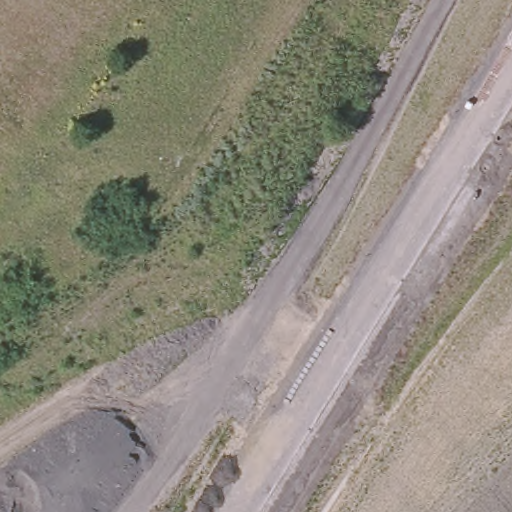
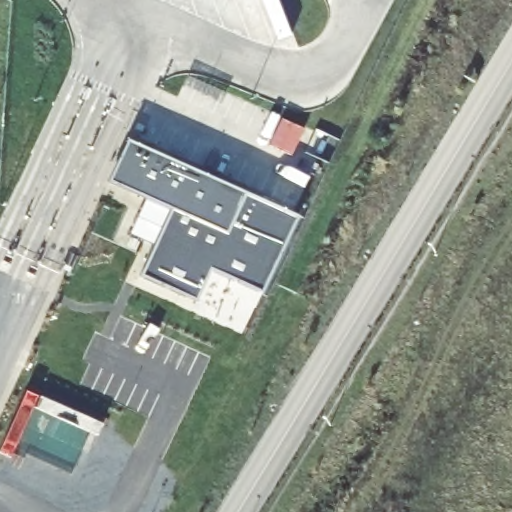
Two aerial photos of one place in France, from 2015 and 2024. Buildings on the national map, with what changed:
new [(247,192),(227,233),(140,192),(143,185),(116,172),(132,138),(247,192)]
new [(175,209),(227,233),(247,192),(297,214),(260,292),(210,269),(195,303),(141,279),(157,244),(132,233),(149,197),(175,209)]
new [(103,424),(97,435),(35,406),(10,457),(0,452),(0,450),(27,390),(103,424)]

